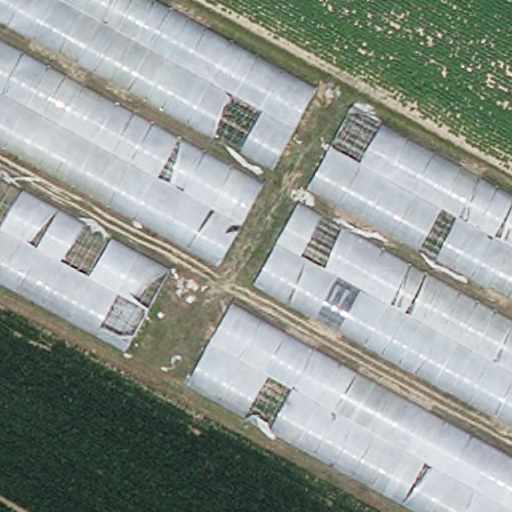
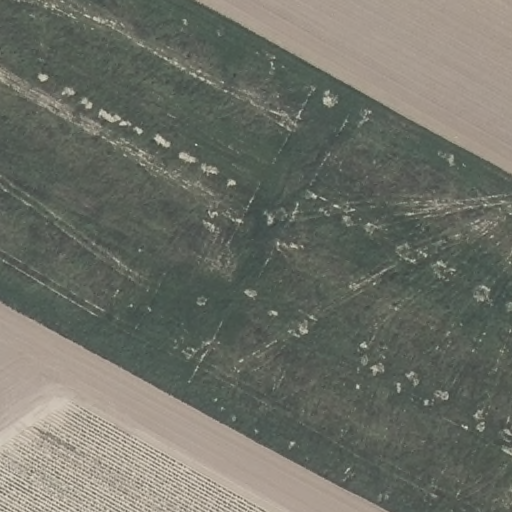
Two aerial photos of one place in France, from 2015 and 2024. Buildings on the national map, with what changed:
demolished [(0,0),(157,0),(316,86),(275,162),(0,13),(0,0)]
demolished [(512,14),(512,151),(235,0),(487,0),(512,14)]
demolished [(223,258),(0,138),(0,39),(264,180),(223,258)]
demolished [(313,183),(354,107),(512,194),(512,291),(313,183)]
demolished [(0,176),(172,266),(129,343),(0,273),(0,176)]
demolished [(512,318),(512,417),(260,278),(302,201),(512,318)]
demolished [(435,512),(192,377),(234,302),(512,454),(512,512),(435,512)]

